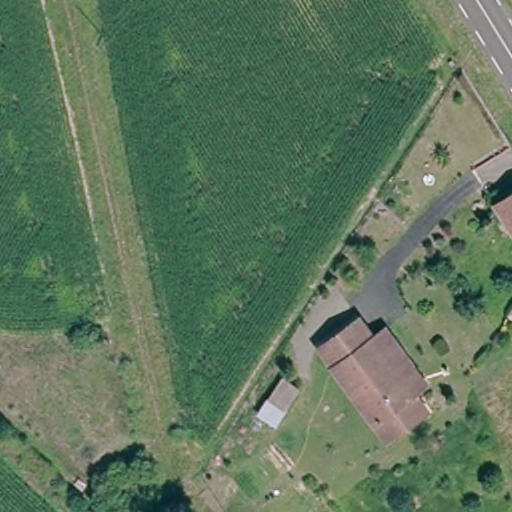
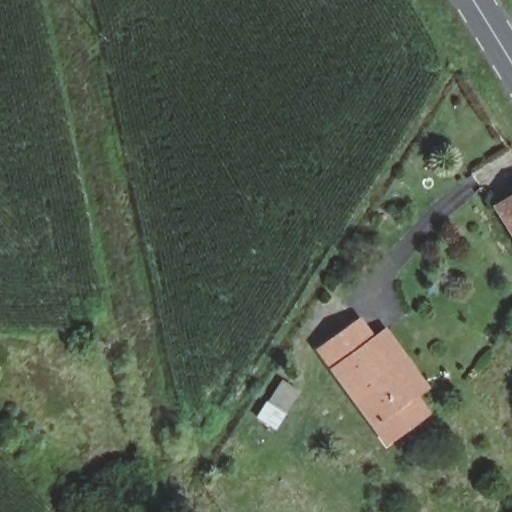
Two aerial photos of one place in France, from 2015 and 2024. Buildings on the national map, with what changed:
unchanged [(512,203),(512,233),(499,211),(512,203)]
unchanged [(417,400),(429,418),(388,444),(325,351),(365,323),(376,340),(417,400)]
unchanged [(390,329),(431,392),(417,400),(376,340),(390,329)]
unchanged [(303,390),(288,414),(270,401),(285,377),(303,390)]

